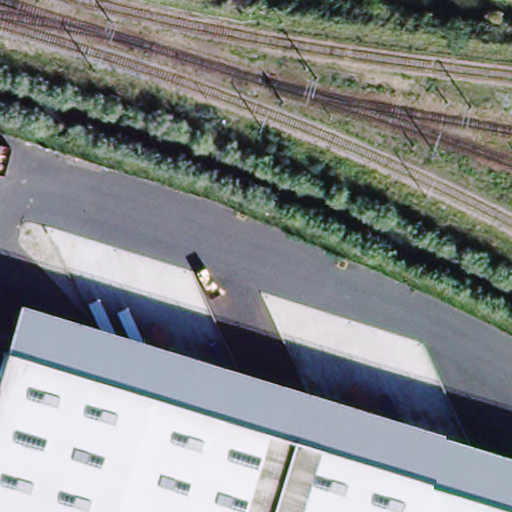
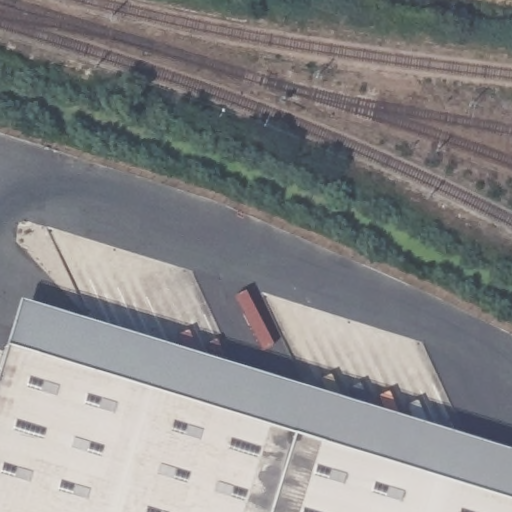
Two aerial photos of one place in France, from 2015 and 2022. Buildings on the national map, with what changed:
unchanged [(512,451),(512,512),(0,512),(0,382),(25,300),(512,451)]

